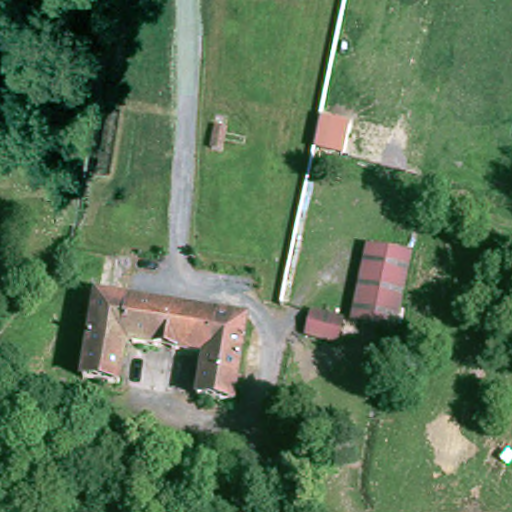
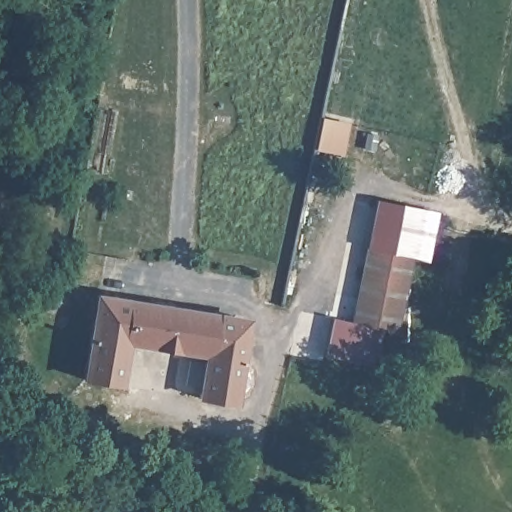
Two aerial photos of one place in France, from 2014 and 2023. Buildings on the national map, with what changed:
demolished [(213,150),(217,127),(227,129),(222,151),(213,150)]
new [(416,257),(376,249),(361,322),(351,320),(372,200),(438,213),(427,259),(416,257)]
unchanged [(376,249),(416,257),(401,331),(361,322),(376,249)]
unchanged [(247,316),(234,398),(199,393),(206,351),(127,337),(120,380),(84,374),(97,292),(247,316)]
unchanged [(312,334),(317,314),(347,322),(342,342),(312,334)]

